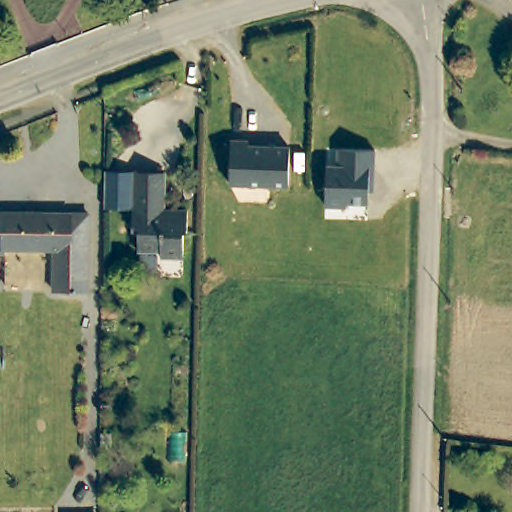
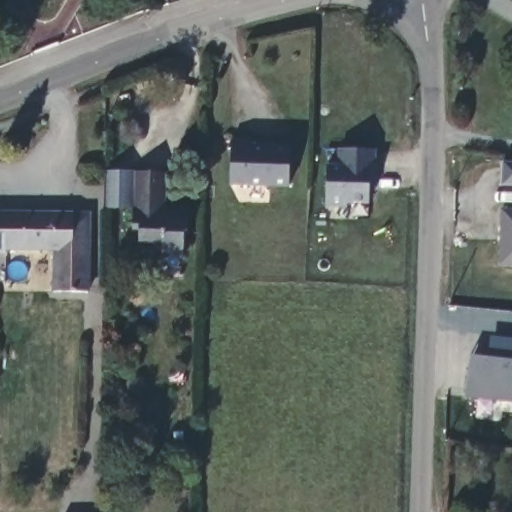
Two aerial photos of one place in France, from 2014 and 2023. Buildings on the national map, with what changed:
unchanged [(287,186),(246,184),(229,184),(231,139),(247,139),(247,144),(289,146),(287,186)]
unchanged [(375,190),(370,190),(368,203),(347,202),(346,207),(327,206),(329,165),(338,165),(340,150),(376,151),(375,190)]
unchanged [(502,161),(512,163),(512,186),(502,186),(502,161)]
unchanged [(138,207),(133,208),(107,208),(107,170),(138,169),(138,207)]
unchanged [(167,170),(167,208),(191,209),(191,227),(186,229),(187,255),(165,255),(164,248),(142,248),(140,227),(132,226),(133,208),(138,207),(138,169),(167,170)]
unchanged [(501,209),(512,209),(512,266),(499,265),(501,209)]
unchanged [(7,249),(0,249),(0,212),(8,212),(7,246),(7,249)]
unchanged [(56,290),(56,262),(56,247),(7,246),(8,212),(92,213),(91,262),(91,290),(56,290)]
new [(482,359),(491,360),(493,339),(512,341),(512,404),(467,400),(470,365),(471,358),(482,359)]

